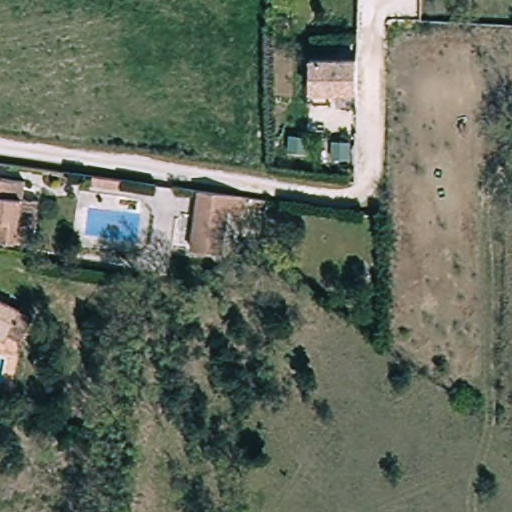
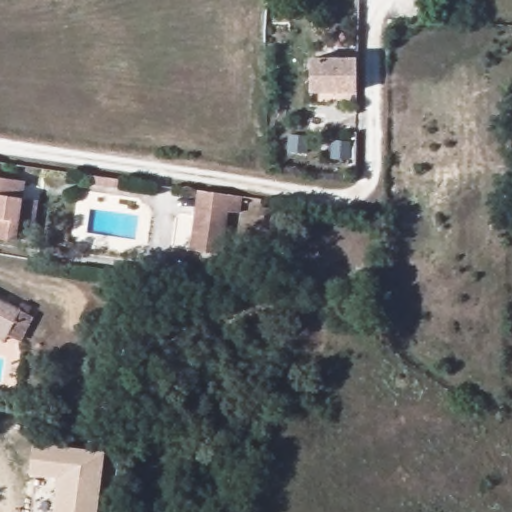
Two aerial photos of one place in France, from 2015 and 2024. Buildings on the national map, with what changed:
unchanged [(357,107),(335,107),(336,94),(309,94),(310,55),(358,54),(357,107)]
unchanged [(17,239),(0,237),(0,177),(24,181),(17,239)]
unchanged [(115,194),(87,190),(90,177),(117,180),(115,194)]
unchanged [(193,220),(198,192),(242,199),(242,217),(227,217),(222,257),(202,254),(187,253),(193,220)]
unchanged [(0,320),(0,290),(20,298),(8,323),(0,320)]
new [(105,451),(97,512),(54,512),(57,479),(28,475),(33,443),(105,451)]

